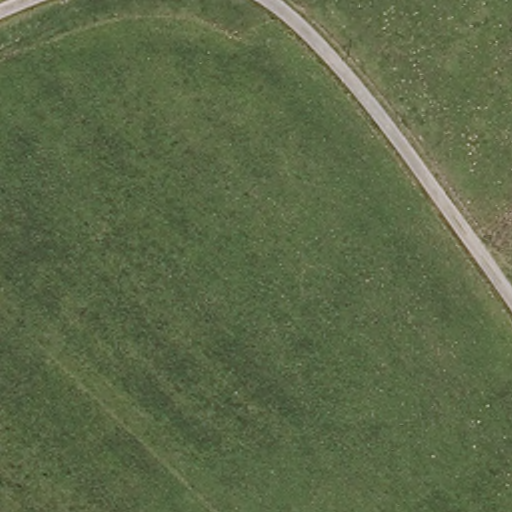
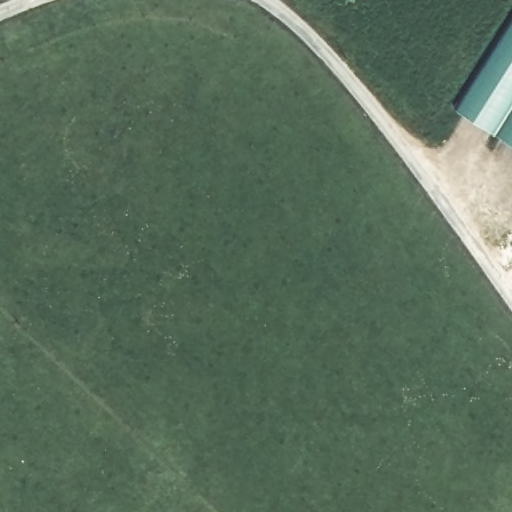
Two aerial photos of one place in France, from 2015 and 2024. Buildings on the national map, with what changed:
new [(512,21),(512,146),(456,110),(512,21)]

